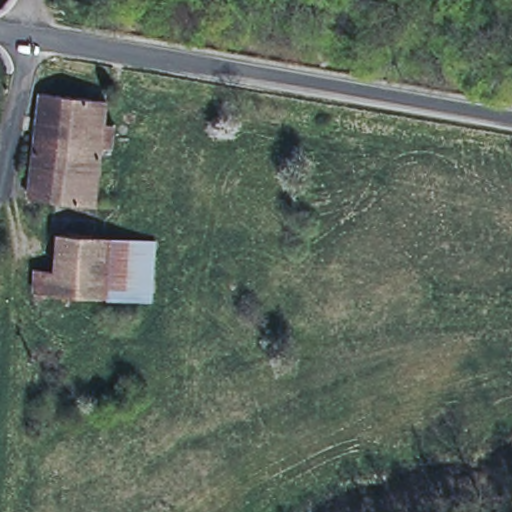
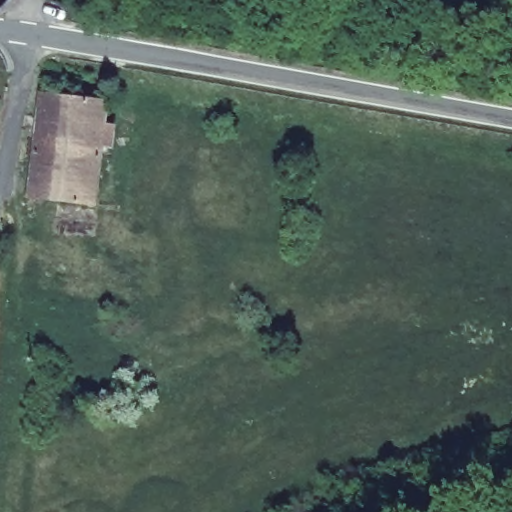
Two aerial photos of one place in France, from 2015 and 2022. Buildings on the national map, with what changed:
unchanged [(103,90),(89,199),(31,193),(43,90),(103,90)]
demolished [(40,287),(48,254),(74,256),(76,238),(108,242),(100,293),(51,288),(40,287)]
demolished [(108,242),(155,247),(150,299),(100,293),(108,242)]

